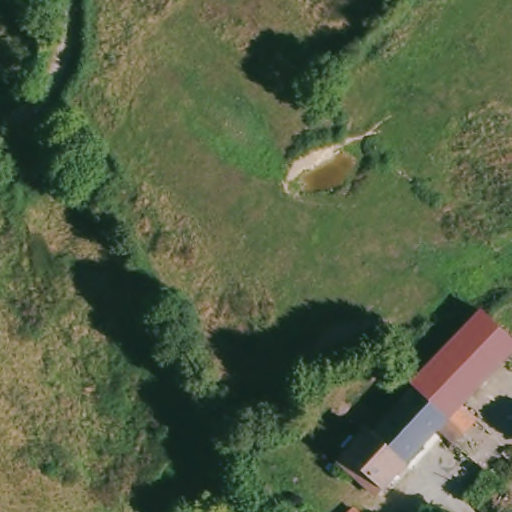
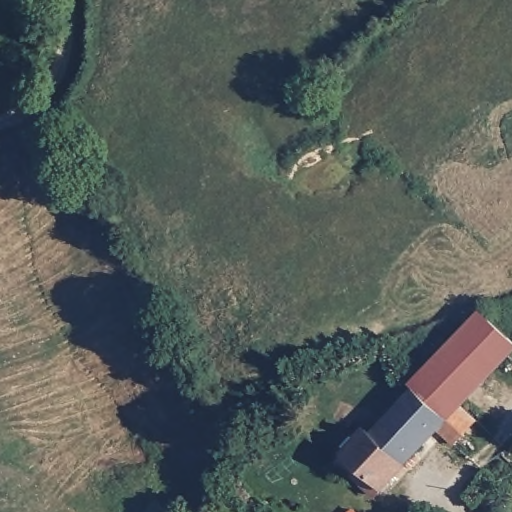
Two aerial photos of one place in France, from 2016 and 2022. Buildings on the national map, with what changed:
unchanged [(512,334),(512,347),(459,403),(456,400),(443,411),(413,383),(411,380),(482,306),(512,334)]
unchanged [(452,442),(435,427),(374,491),(338,457),(365,428),(370,432),(400,398),(413,383),(443,411),(456,400),(459,403),(475,418),(452,442)]
unchanged [(354,502),(365,512),(344,512),(354,502)]

